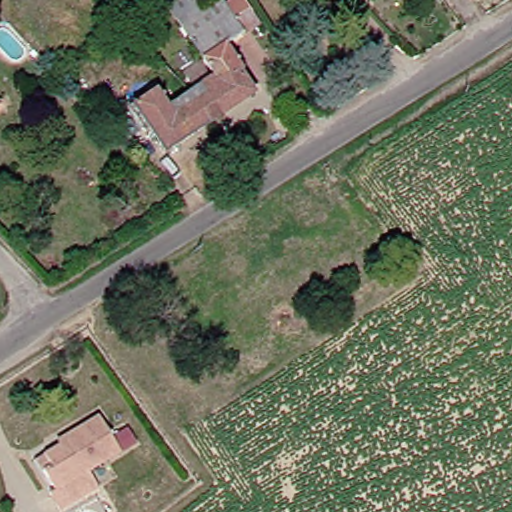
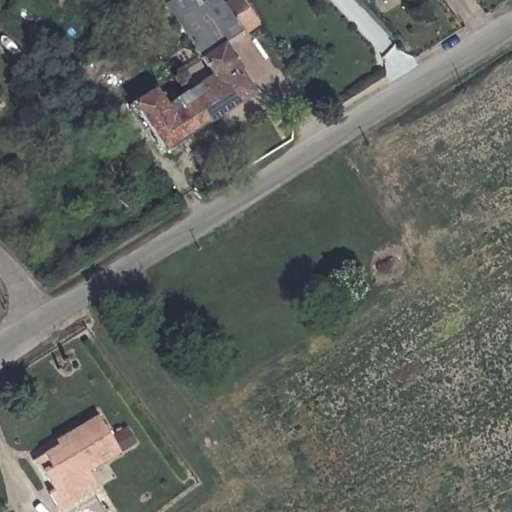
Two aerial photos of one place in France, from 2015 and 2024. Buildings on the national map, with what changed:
unchanged [(250,94),(205,122),(184,93),(209,77),(196,57),(161,3),(165,0),(191,0),(196,7),(207,0),(214,0),(217,5),(227,0),(236,0),(250,21),(217,43),(250,94)]
unchanged [(159,151),(128,103),(151,89),(162,106),(184,93),(205,122),(159,151)]
unchanged [(55,431),(89,411),(110,447),(79,467),(88,482),(50,506),(40,489),(45,486),(34,466),(27,454),(34,450),(57,436),(55,431)]

